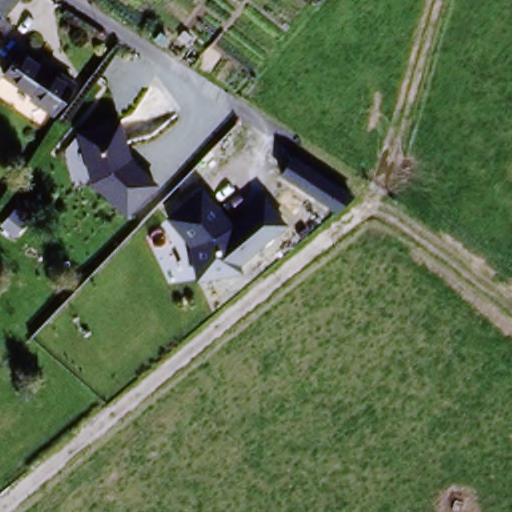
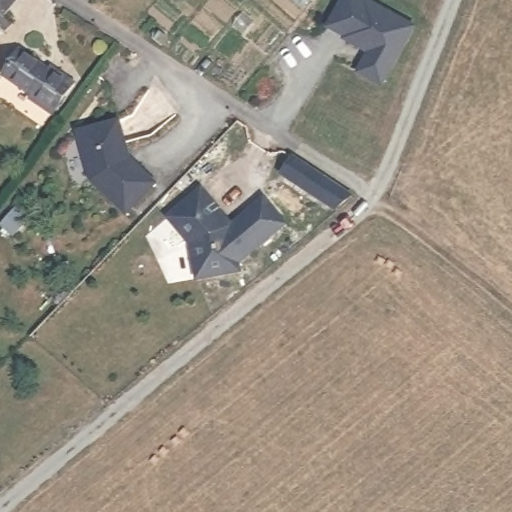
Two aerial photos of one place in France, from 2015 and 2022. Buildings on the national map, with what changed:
unchanged [(8,0),(0,6),(0,0),(8,0)]
new [(347,40),(331,30),(349,0),(355,0),(367,7),(369,5),(414,34),(380,88),(358,75),(369,55),(362,51),(346,41),(347,40)]
unchanged [(17,37),(0,54),(0,34),(7,28),(17,37)]
unchanged [(77,91),(45,124),(18,97),(24,91),(0,68),(0,55),(14,41),(45,71),(51,65),(77,91)]
unchanged [(129,156),(156,183),(124,212),(87,178),(76,128),(119,118),(129,156)]
unchanged [(335,210),(278,176),(287,160),(352,197),(335,210)]
unchanged [(265,192),(286,218),(236,258),(236,271),(192,272),(191,240),(168,209),(202,182),(232,217),(265,192)]

